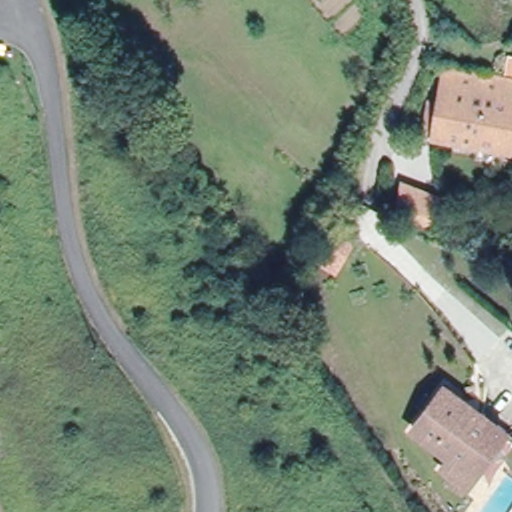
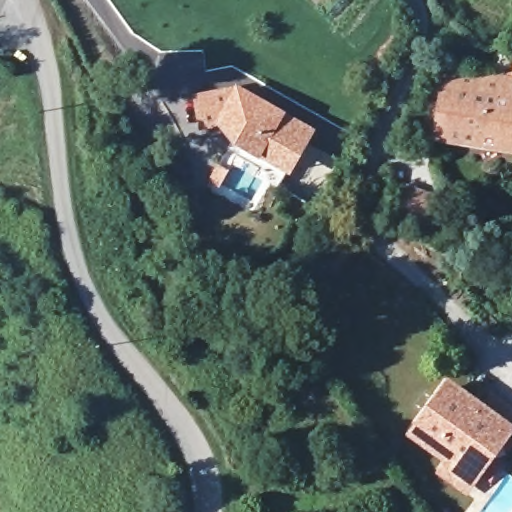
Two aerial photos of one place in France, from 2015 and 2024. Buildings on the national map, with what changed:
unchanged [(426,125),(429,107),(443,110),(446,94),(447,94),(450,75),(502,84),(506,59),(512,60),(512,154),(438,142),(438,140),(430,139),(424,137),(426,125)]
new [(289,174),(259,156),(235,145),(217,122),(214,129),(200,130),(193,95),(235,85),(282,112),(312,130),(289,174)]
unchanged [(439,201),(429,226),(399,215),(403,186),(439,201)]
unchanged [(473,476),(464,487),(445,471),(454,460),(416,430),(451,385),(506,428),(510,431),(473,476)]

